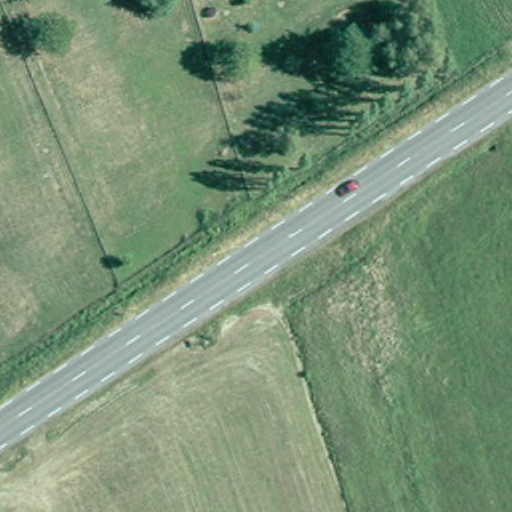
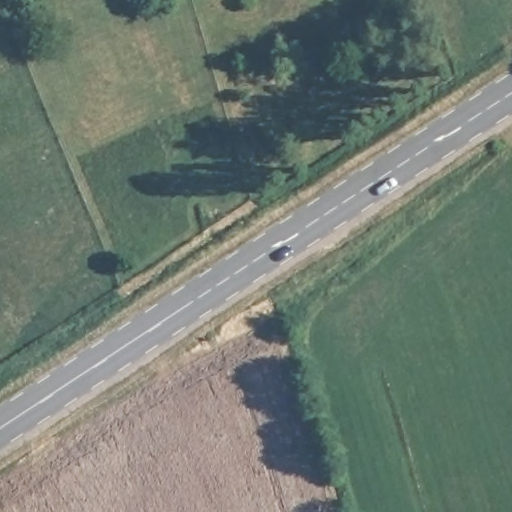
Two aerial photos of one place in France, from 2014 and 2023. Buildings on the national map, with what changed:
[]

